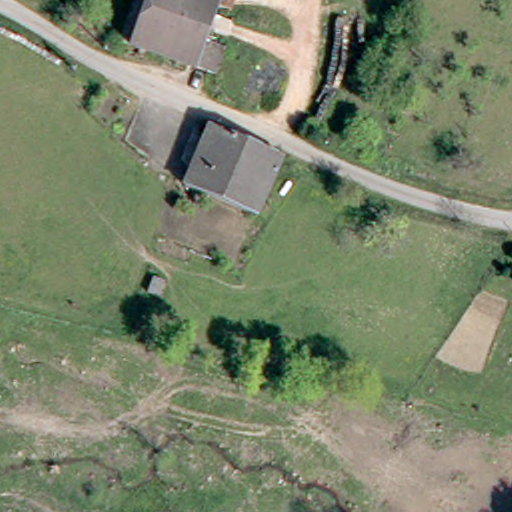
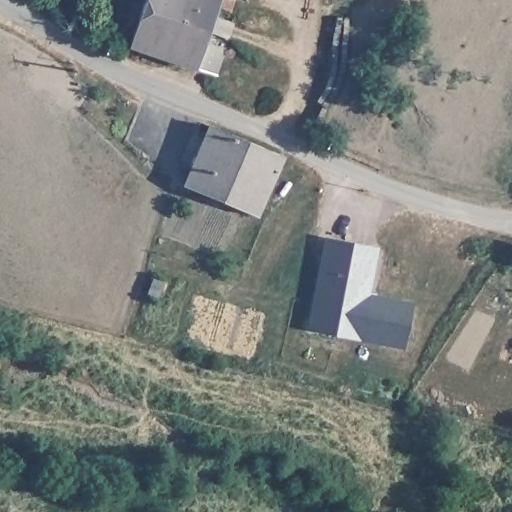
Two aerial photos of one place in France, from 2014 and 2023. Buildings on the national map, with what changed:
unchanged [(229,50),(220,76),(133,48),(151,0),(224,0),(207,42),(229,50)]
unchanged [(186,185),(211,125),(281,154),(256,215),(186,185)]
new [(327,238),(376,248),(366,300),(377,301),(378,296),(411,302),(403,344),(331,331),(311,326),(315,307),(327,238)]

